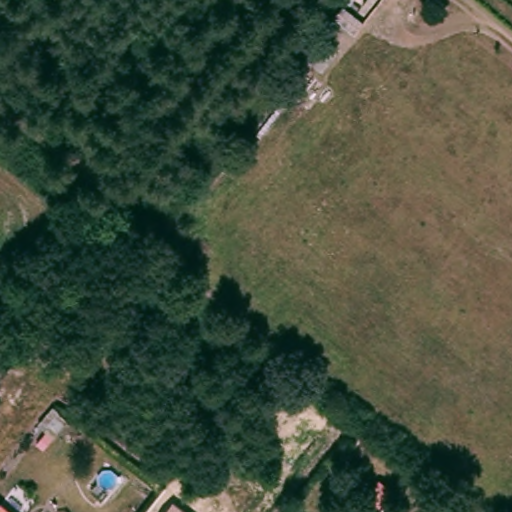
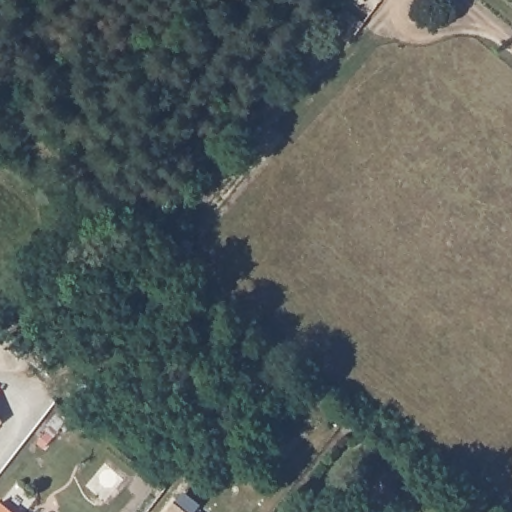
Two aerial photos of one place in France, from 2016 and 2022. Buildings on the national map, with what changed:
unchanged [(6,512),(0,512),(0,507),(6,512)]

